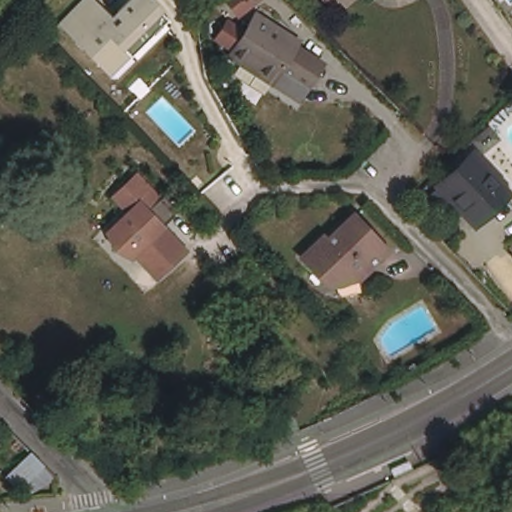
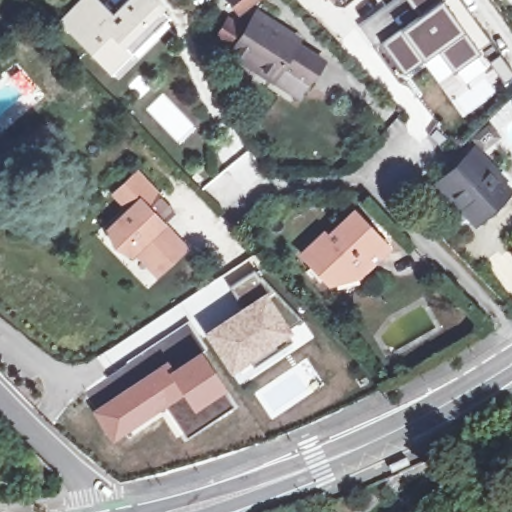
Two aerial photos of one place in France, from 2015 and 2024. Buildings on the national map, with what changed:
unchanged [(103,67),(62,22),(86,0),(95,0),(113,20),(135,0),(151,0),(164,12),(163,13),(172,22),(132,58),(112,76),(103,67)]
unchanged [(242,11),(233,0),(257,0),(242,11)]
new [(437,49),(425,59),(422,61),(405,74),(385,45),(404,31),(423,17),(410,0),(445,0),(442,4),(465,32),(481,53),(455,72),(437,49)]
demolished [(496,0),(512,0),(512,21),(496,0)]
unchanged [(300,99),(273,79),(233,49),(237,43),(222,31),(233,15),(250,27),(262,9),(281,23),(303,38),(300,44),(327,63),(300,99)]
unchanged [(498,173),(511,187),(478,219),(442,182),(473,150),(487,164),(493,158),(503,168),(498,173)]
unchanged [(158,195),(174,211),(162,222),(185,246),(177,253),(156,274),(133,250),(130,254),(113,246),(106,229),(127,208),(112,193),(115,190),(122,183),(135,171),(158,195)]
unchanged [(329,279),(302,248),(318,233),(327,234),(355,208),(390,245),(360,272),(329,279)]
new [(263,288),(295,330),(266,352),(231,374),(202,332),(263,288)]
new [(170,368),(201,350),(227,389),(193,412),(182,397),(167,370),(170,368)]
new [(165,361),(170,368),(167,370),(182,397),(165,408),(112,441),(90,410),(165,361)]
new [(182,397),(193,412),(227,389),(235,406),(184,437),(165,408),(182,397)]
unchanged [(428,446),(446,436),(453,449),(435,459),(428,446)]
unchanged [(62,473),(58,493),(26,496),(22,479),(10,468),(33,444),(62,473)]

